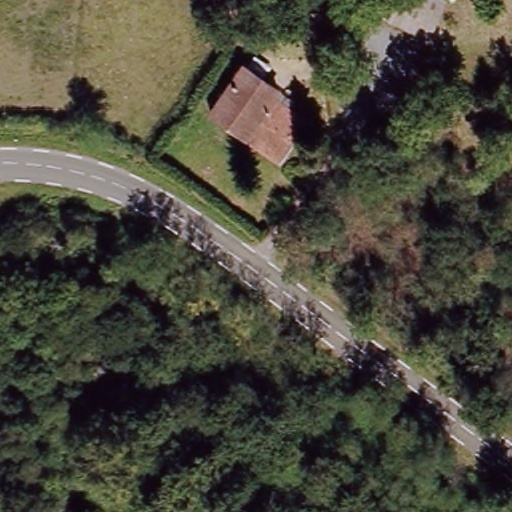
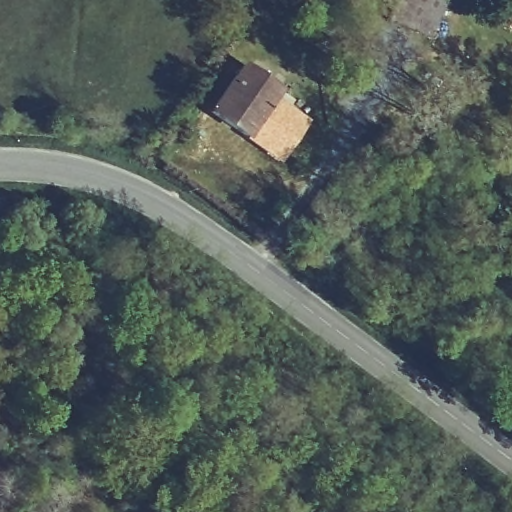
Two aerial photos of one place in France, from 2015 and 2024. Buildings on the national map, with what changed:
unchanged [(436,23),(429,43),(385,24),(392,6),(395,0),(445,0),(445,1),(436,23)]
unchanged [(246,61),(280,86),(273,96),(307,121),(280,160),(211,110),(246,61)]

